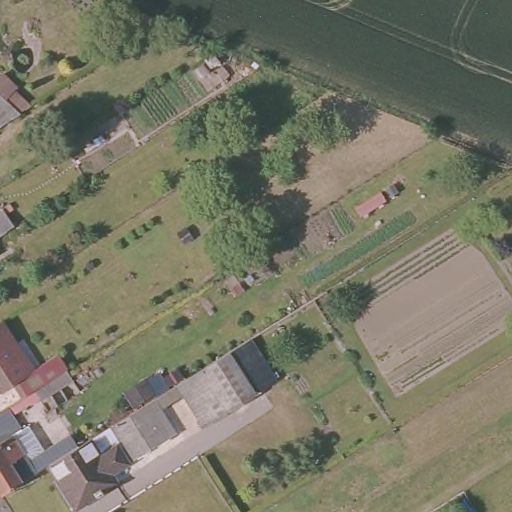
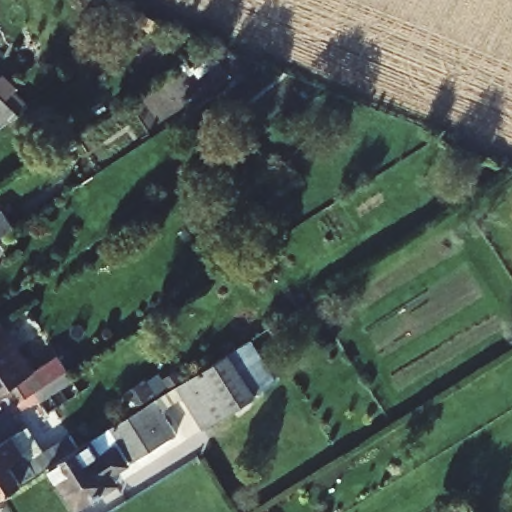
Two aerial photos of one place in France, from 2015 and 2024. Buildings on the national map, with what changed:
unchanged [(20,87),(17,90),(32,104),(0,125),(0,78),(5,73),(20,87)]
unchanged [(48,356),(56,369),(13,396),(5,382),(0,386),(0,325),(27,369),(48,356)]
unchanged [(270,387),(215,421),(187,378),(242,344),(270,387)]
unchanged [(56,369),(48,356),(58,350),(75,379),(24,413),(13,396),(56,369)]
unchanged [(72,451),(107,428),(151,401),(172,435),(105,477),(111,486),(70,511),(43,468),(72,451)]
unchanged [(15,432),(6,437),(0,441),(0,412),(1,411),(15,432)]
unchanged [(43,468),(0,496),(0,441),(6,437),(15,432),(20,428),(37,455),(64,438),(72,451),(43,468)]

